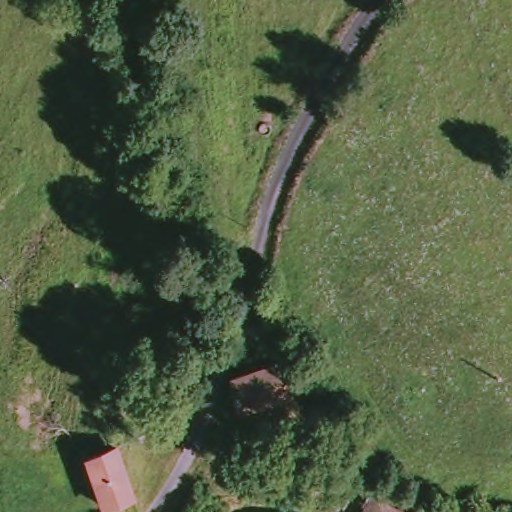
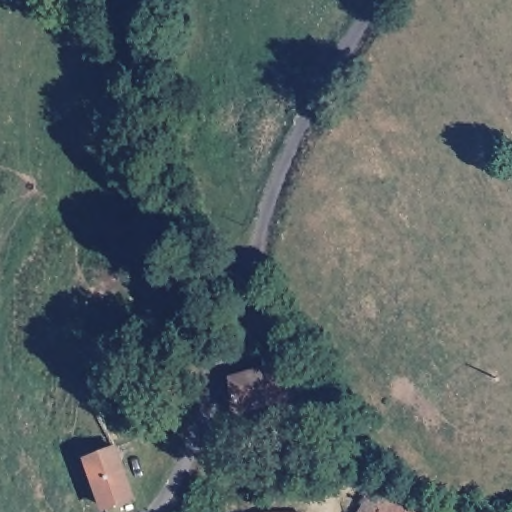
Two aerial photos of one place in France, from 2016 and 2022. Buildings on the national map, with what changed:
unchanged [(299,400),(241,415),(235,397),(240,393),(238,381),(286,368),(295,387),(299,400)]
unchanged [(121,447),(138,503),(105,512),(103,512),(85,457),(121,447)]
unchanged [(382,501),(409,512),(374,512),(382,501)]

